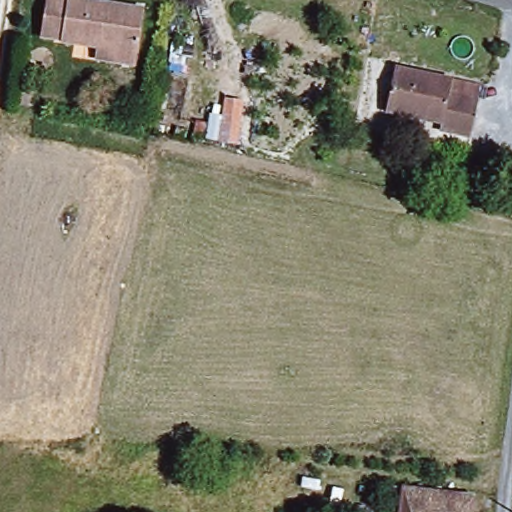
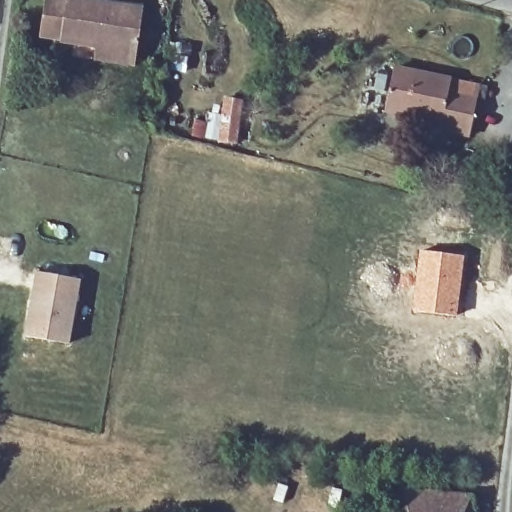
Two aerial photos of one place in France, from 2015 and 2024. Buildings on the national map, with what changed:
unchanged [(92,56),(94,42),(41,31),(48,0),(95,0),(140,9),(133,49),(130,63),(92,56)]
unchanged [(438,127),(441,117),(410,109),(405,115),(385,109),(397,66),(480,90),(466,136),(438,127)]
new [(419,250),(464,255),(456,315),(410,310),(419,250)]
new [(79,280),(66,344),(23,338),(35,273),(79,280)]
unchanged [(474,500),(472,512),(383,512),(388,487),(474,500)]

